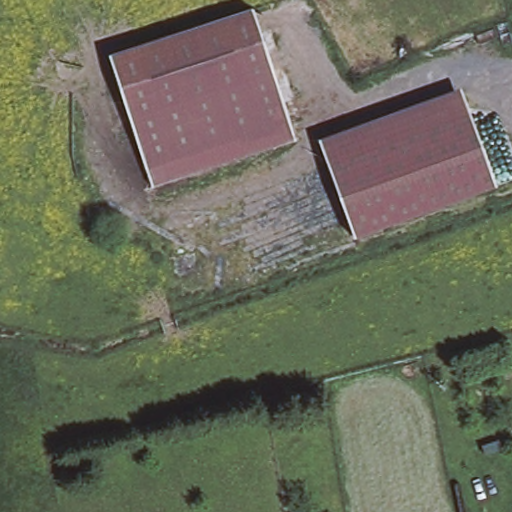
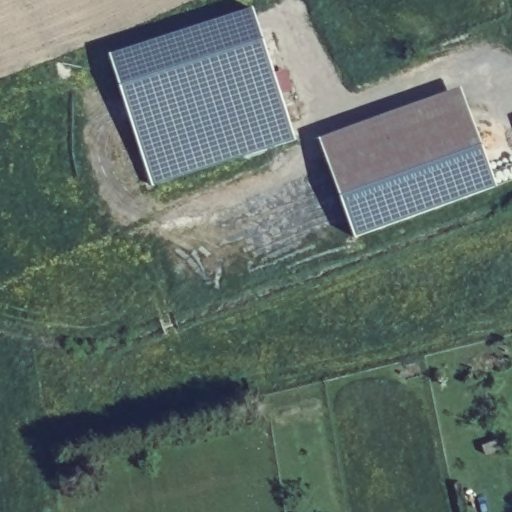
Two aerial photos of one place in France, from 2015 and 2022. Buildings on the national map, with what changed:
unchanged [(145,167),(109,56),(252,8),(287,118),(145,167)]
unchanged [(319,139),(460,88),(467,107),(325,158),(319,139)]
unchanged [(354,236),(325,158),(467,107),(495,185),(354,236)]
unchanged [(295,138),(152,185),(145,167),(287,118),(295,138)]

